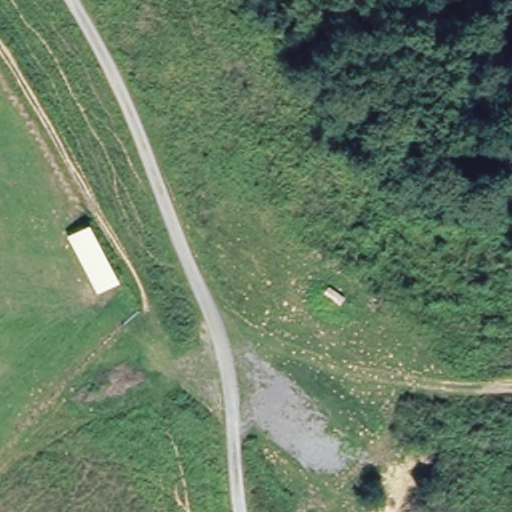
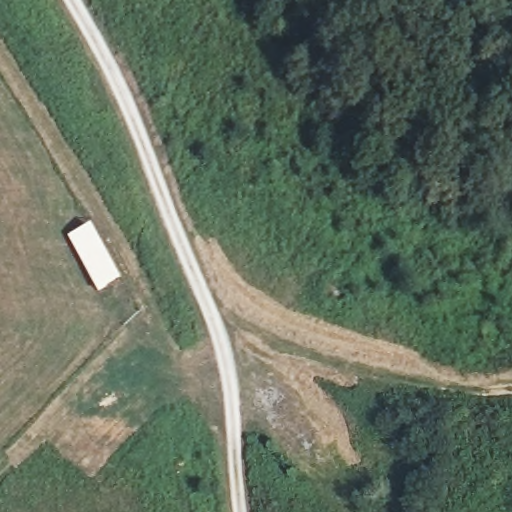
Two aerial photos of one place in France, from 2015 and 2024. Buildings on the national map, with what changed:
unchanged [(124,281),(100,296),(65,240),(91,225),(124,281)]

